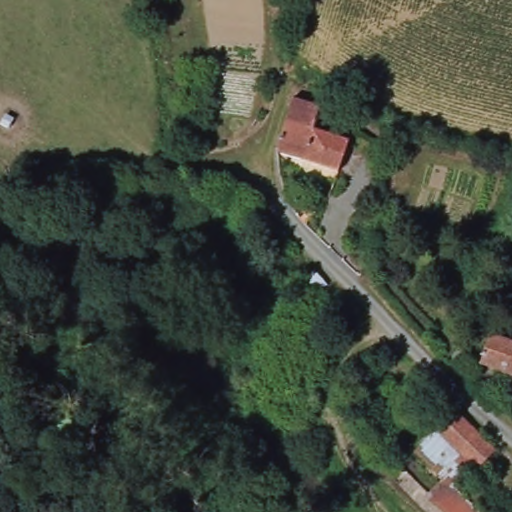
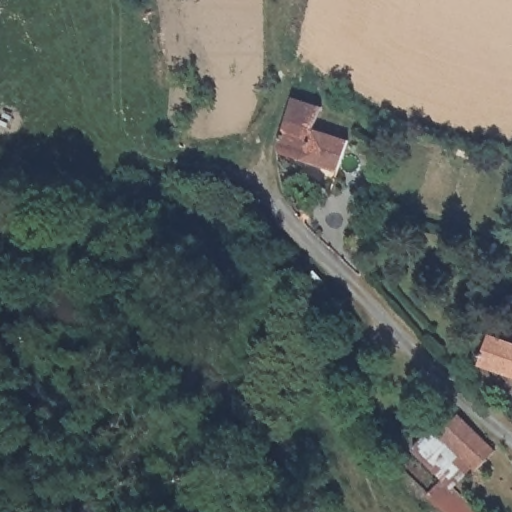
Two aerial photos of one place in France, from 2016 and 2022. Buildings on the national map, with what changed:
unchanged [(320,104),(314,126),(350,138),(338,172),(276,150),(289,96),(294,97),(320,104)]
unchanged [(322,286),(305,304),(289,289),(306,272),(322,286)]
unchanged [(486,338),(512,345),(512,377),(477,368),(486,338)]
unchanged [(436,419),(443,425),(461,407),(499,448),(481,464),(477,461),(455,481),(448,474),(415,439),(436,419)]
unchanged [(399,454),(415,439),(448,474),(432,489),(399,454)]

